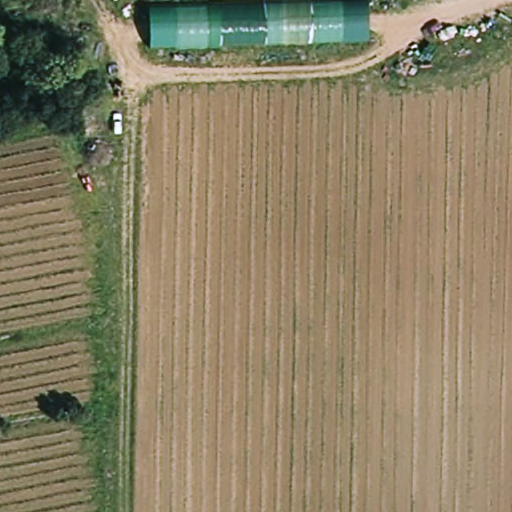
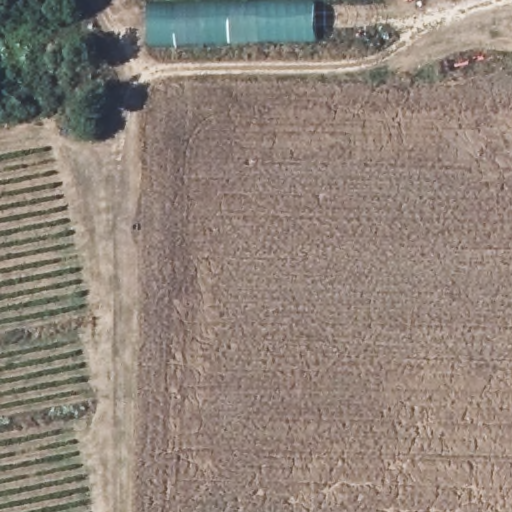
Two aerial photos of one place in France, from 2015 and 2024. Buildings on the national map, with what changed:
unchanged [(370,0),(372,43),(153,52),(152,6),(370,0)]

